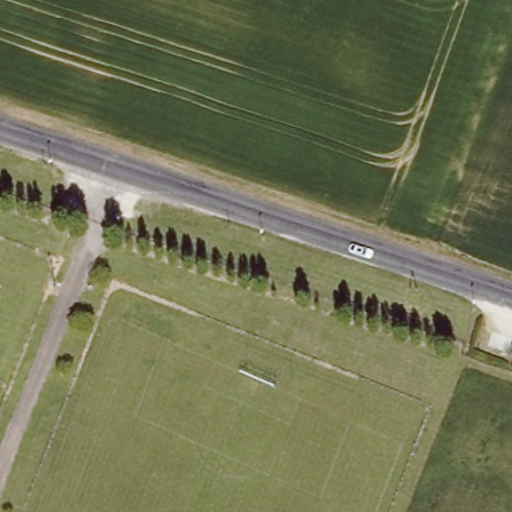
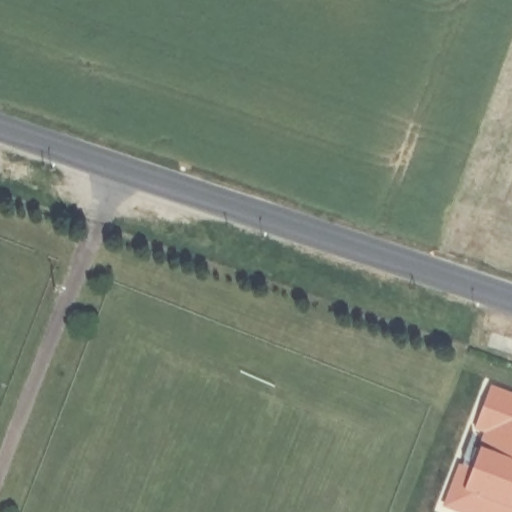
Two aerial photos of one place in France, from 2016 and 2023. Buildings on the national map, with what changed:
new [(447,505),(492,388),(512,396),(512,512),(465,512),(447,505)]

